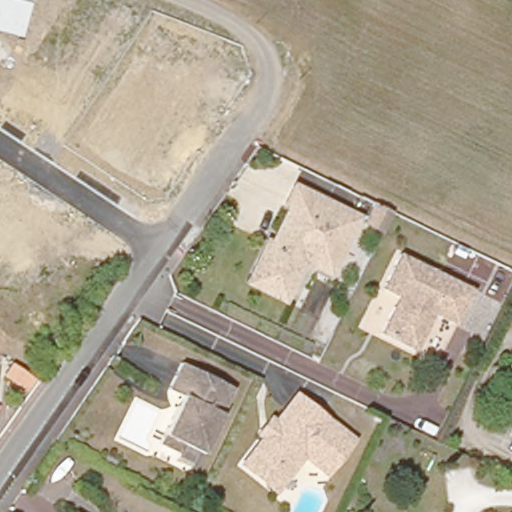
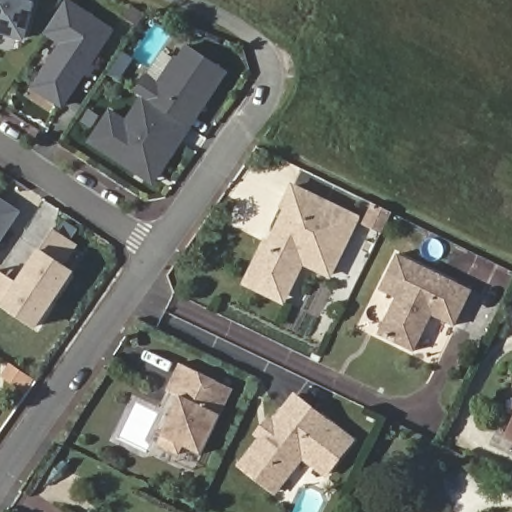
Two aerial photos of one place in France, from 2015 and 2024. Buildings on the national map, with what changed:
new [(33,3),(24,38),(0,32),(0,0),(20,0),(33,3)]
new [(32,87),(62,44),(45,33),(66,0),(112,31),(62,106),(32,87)]
new [(110,110),(126,121),(142,97),(133,91),(143,76),(156,84),(174,57),(177,59),(186,45),(225,71),(197,114),(192,111),(184,124),(175,137),(179,140),(158,171),(152,182),(147,179),(89,141),(110,110)]
unchanged [(247,281),(252,271),(267,240),(271,242),(277,229),(290,204),(285,202),(295,183),(359,215),(332,271),(305,258),(289,289),(285,299),(247,281)]
new [(8,227),(3,223),(0,228),(0,201),(17,212),(8,227)]
unchanged [(389,214),(380,232),(376,230),(378,224),(370,220),(372,213),(371,212),(373,206),(389,214)]
new [(54,231),(75,245),(61,265),(40,251),(54,231)]
new [(39,250),(71,272),(35,327),(2,305),(39,250)]
unchanged [(472,287),(455,321),(432,311),(416,347),(380,329),(396,293),(382,287),(400,252),(472,287)]
new [(4,303),(0,301),(0,273),(17,284),(4,303)]
unchanged [(32,375),(22,390),(1,377),(12,361),(32,375)]
unchanged [(204,454),(187,445),(183,452),(162,442),(185,396),(172,389),(184,364),(237,389),(204,454)]
unchanged [(355,435),(328,467),(307,450),(277,484),(246,459),(266,433),(259,428),(271,412),(277,417),(298,390),(355,435)]
unchanged [(506,440),(512,426),(512,444),(506,440)]

